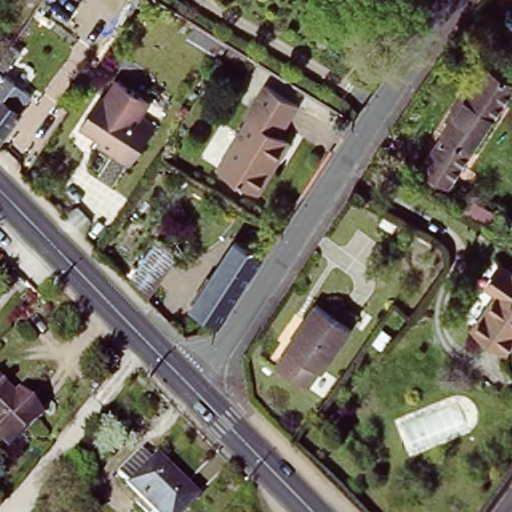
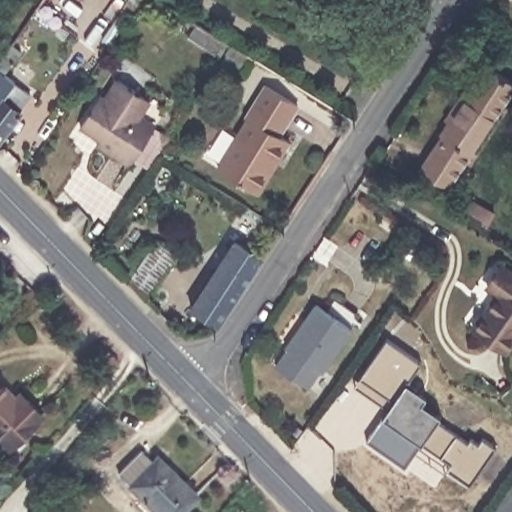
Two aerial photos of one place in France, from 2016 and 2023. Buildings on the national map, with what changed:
unchanged [(1,79),(10,85),(0,100),(0,61),(1,59),(9,65),(1,79)]
unchanged [(448,136),(446,134),(492,68),(512,81),(512,99),(453,187),(424,171),(448,136)]
unchanged [(95,146),(98,142),(79,129),(100,98),(103,100),(117,80),(149,102),(139,116),(155,126),(128,169),(95,146)]
unchanged [(251,192),(216,171),(248,121),(245,119),(265,87),(296,107),(277,139),(289,145),(278,163),(258,196),(251,192)]
unchanged [(0,138),(0,100),(18,114),(0,138)]
unchanged [(493,213),(485,226),(474,218),(461,211),(469,198),(493,213)]
unchanged [(146,299),(128,282),(121,274),(149,233),(158,239),(179,251),(146,299)]
unchanged [(211,279),(236,239),(264,257),(219,325),(191,309),(211,279)]
new [(506,354),(468,328),(493,294),(483,287),(501,262),(512,270),(512,345),(506,354)]
demolished [(511,285),(499,278),(509,265),(512,268),(512,339),(486,320),(511,285)]
unchanged [(319,374),(305,394),(276,373),(319,308),(320,309),(321,307),(353,329),(321,376),(319,374)]
new [(469,484),(447,469),(451,462),(421,443),(404,467),(366,439),(381,416),(387,408),(353,384),(386,337),(421,362),(408,380),(428,395),(423,403),(442,415),(438,421),(456,433),(468,442),(471,438),(479,443),(483,437),(495,447),(469,484)]
unchanged [(115,346),(122,353),(115,359),(114,359),(112,361),(108,357),(110,354),(108,353),(115,346)]
unchanged [(0,376),(26,402),(31,398),(48,414),(14,447),(0,433),(0,376)]
unchanged [(158,458),(199,499),(186,512),(155,512),(119,477),(143,452),(154,463),(158,458)]

